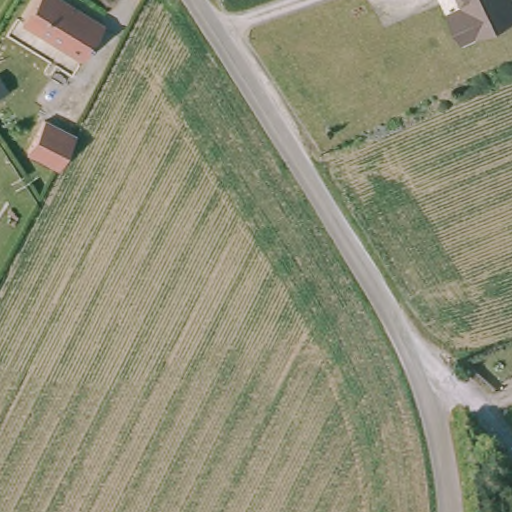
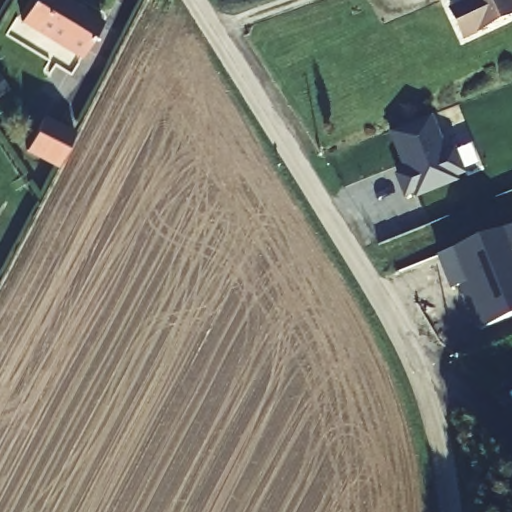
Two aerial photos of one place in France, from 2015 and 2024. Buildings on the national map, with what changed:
unchanged [(81,60),(19,22),(32,0),(64,0),(102,23),(81,60)]
unchanged [(452,7),(468,1),(468,0),(512,0),(512,12),(464,35),(452,7)]
new [(430,114),(438,133),(435,135),(442,153),(454,148),(463,172),(451,176),(453,180),(416,195),(414,191),(405,195),(397,174),(411,169),(408,161),(403,163),(390,130),(430,114)]
new [(58,169),(27,153),(45,116),(77,133),(58,169)]
new [(478,332),(459,286),(451,290),(438,257),(479,240),(512,227),(512,318),(478,332)]

